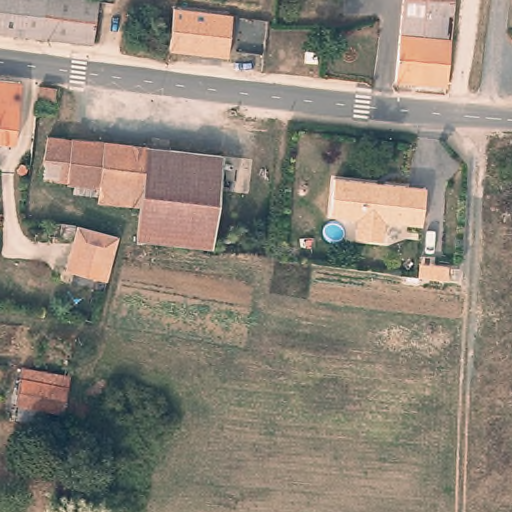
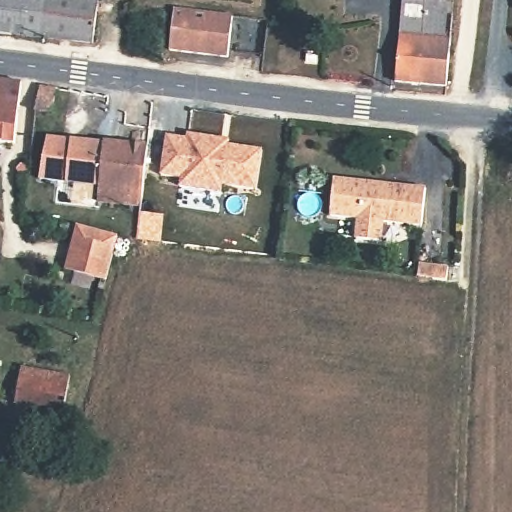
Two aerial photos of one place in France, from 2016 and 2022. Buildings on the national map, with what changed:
unchanged [(45,34),(0,30),(0,0),(50,0),(45,34)]
unchanged [(50,0),(99,0),(95,39),(45,34),(50,0)]
unchanged [(447,84),(395,78),(403,11),(427,14),(429,0),(456,0),(455,13),(447,84)]
unchanged [(404,0),(429,0),(427,14),(403,11),(404,0)]
unchanged [(174,6),(232,13),(227,53),(170,47),(174,6)]
unchanged [(16,145),(0,144),(0,82),(22,84),(16,145)]
unchanged [(56,84),(52,111),(37,108),(41,82),(56,84)]
new [(186,137),(186,132),(230,138),(229,143),(261,148),(255,189),(221,184),(221,191),(179,186),(180,178),(160,175),(165,134),(186,137)]
unchanged [(43,140),(66,142),(63,183),(35,181),(41,148),(43,140)]
unchanged [(66,142),(144,149),(137,206),(95,203),(95,195),(70,193),(70,184),(63,183),(66,142)]
demolished [(140,207),(145,149),(222,156),(212,248),(135,240),(139,215),(140,207)]
unchanged [(333,179),(423,190),(420,227),(383,222),(381,241),(355,238),(357,219),(329,216),(333,179)]
unchanged [(119,234),(119,236),(107,278),(75,270),(65,267),(76,222),(85,224),(103,230),(119,234)]
unchanged [(71,375),(65,413),(16,404),(22,367),(71,375)]

